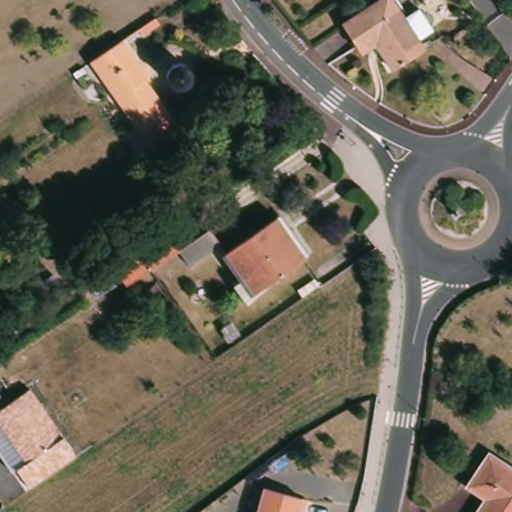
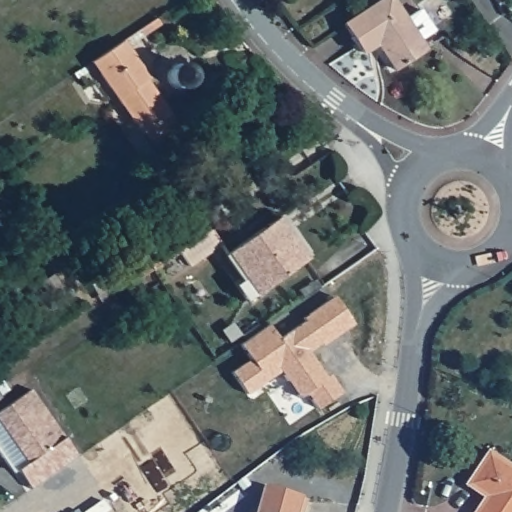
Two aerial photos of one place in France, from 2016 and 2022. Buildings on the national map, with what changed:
unchanged [(384,0),(421,54),(390,75),(372,47),(357,57),(339,29),(384,0)]
unchanged [(145,81),(141,84),(176,134),(149,153),(88,67),(119,45),(145,81)]
unchanged [(184,61),(189,64),(193,69),(194,75),(192,81),(188,86),(182,87),(176,87),(170,84),(167,78),(166,74),(166,70),(168,66),(171,63),(174,61),(178,60),(182,61),(184,61)]
unchanged [(277,219),(307,260),(255,295),(226,255),(277,219)]
unchanged [(150,271),(125,287),(111,265),(164,229),(179,251),(211,231),(220,246),(190,268),(184,258),(156,279),(150,271)]
new [(249,357),(239,343),(267,324),(278,340),(305,321),(303,317),(333,297),(352,323),(308,352),(326,377),(329,375),(340,392),(317,408),(306,392),(300,397),(279,371),(247,393),(231,372),(249,357)]
unchanged [(0,425),(0,413),(31,392),(77,461),(31,492),(17,473),(0,450),(0,438),(6,434),(0,425)]
unchanged [(487,495),(468,482),(476,468),(493,447),(512,460),(512,512),(474,512),(487,495)]
unchanged [(260,492),(304,502),(301,512),(254,512),(260,492)]

